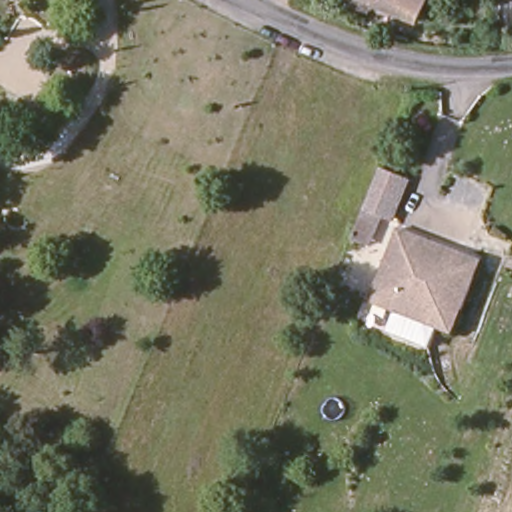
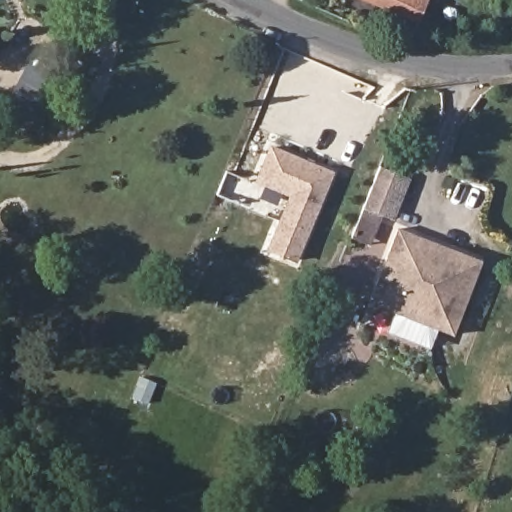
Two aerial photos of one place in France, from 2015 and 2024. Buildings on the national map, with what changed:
unchanged [(381,0),(428,0),(419,17),(381,0)]
new [(296,262),(265,249),(287,197),(254,182),(269,145),(333,172),(296,262)]
unchanged [(353,237),(365,207),(382,166),(409,177),(393,219),(382,215),(370,244),(353,237)]
unchanged [(450,334),(368,299),(399,226),(481,261),(450,334)]

